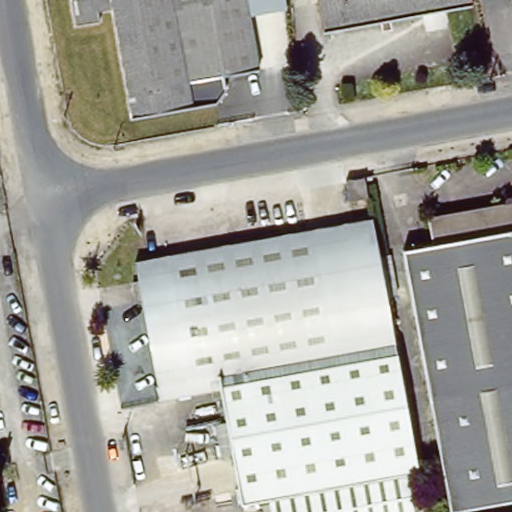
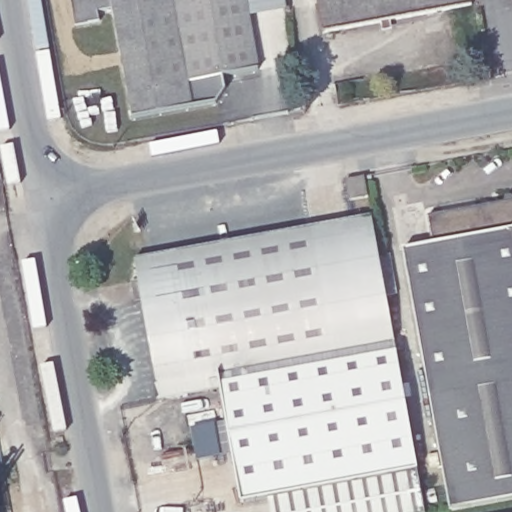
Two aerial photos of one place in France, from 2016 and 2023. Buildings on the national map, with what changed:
unchanged [(257,69),(221,75),(224,91),(217,101),(132,116),(113,8),(97,11),(99,20),(75,24),(72,0),(245,0),(257,69)]
unchanged [(467,6),(319,32),(314,0),(466,0),(467,6)]
unchanged [(365,171),(370,192),(352,195),(348,175),(365,171)]
unchanged [(431,243),(428,215),(512,201),(512,500),(447,511),(402,249),(431,243)]
unchanged [(223,413),(218,384),(154,396),(152,380),(156,380),(135,261),(373,219),(402,383),(223,413)]
unchanged [(270,495),(239,501),(228,447),(218,449),(216,431),(223,417),(223,413),(402,383),(417,471),(270,495)]
unchanged [(424,512),(273,512),(270,495),(417,471),(424,512)]

